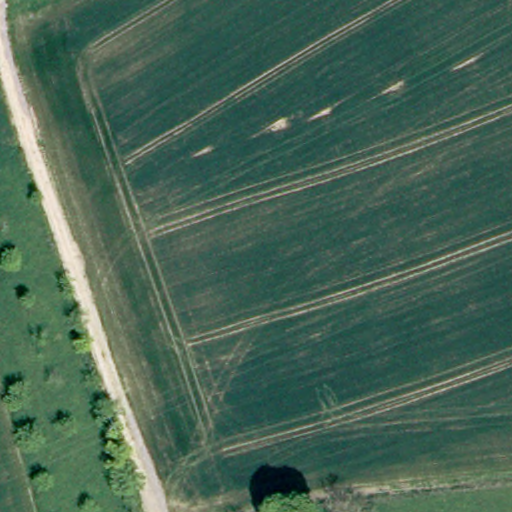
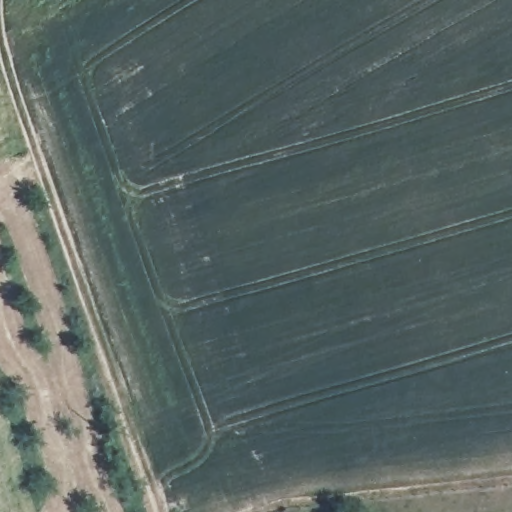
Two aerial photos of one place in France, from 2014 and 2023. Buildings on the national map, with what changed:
[]

